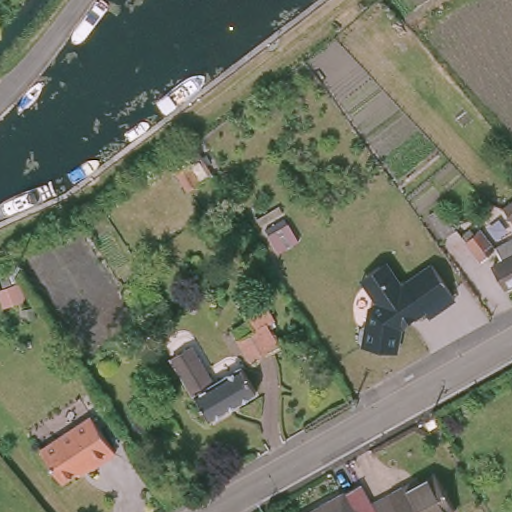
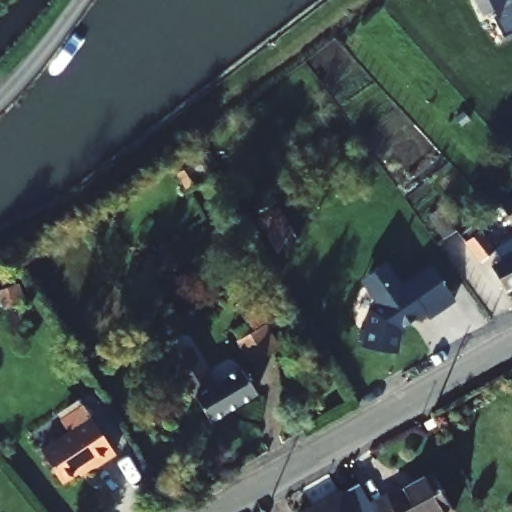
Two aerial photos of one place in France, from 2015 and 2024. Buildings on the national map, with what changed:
new [(506,35),(488,0),(512,0),(512,32),(506,35)]
unchanged [(511,217),(512,216),(512,219),(511,217)]
unchanged [(498,255),(484,264),(470,243),(486,233),(498,255)]
unchanged [(511,291),(502,272),(509,268),(503,254),(512,249),(512,290),(511,291)]
unchanged [(353,347),(348,340),(351,328),(358,324),(361,309),(369,303),(359,286),(362,275),(373,268),(384,271),(394,289),(426,270),(447,305),(419,322),(416,315),(391,330),(385,355),(353,347)]
unchanged [(236,338),(243,334),(254,327),(244,309),(257,300),(281,339),(255,355),(249,358),(236,338)]
unchanged [(236,375),(251,400),(251,402),(203,430),(169,370),(164,362),(180,353),(185,361),(207,392),(236,375)]
unchanged [(441,433),(434,421),(444,416),(450,427),(441,433)]
unchanged [(113,455),(92,468),(89,467),(63,483),(43,453),(93,422),(113,455)]
unchanged [(370,502),(409,481),(412,486),(434,475),(455,512),(375,512),(370,502)]
unchanged [(358,483),(372,512),(304,512),(358,483)]

